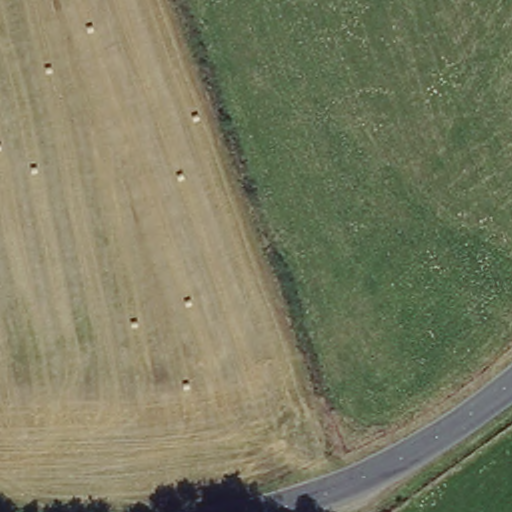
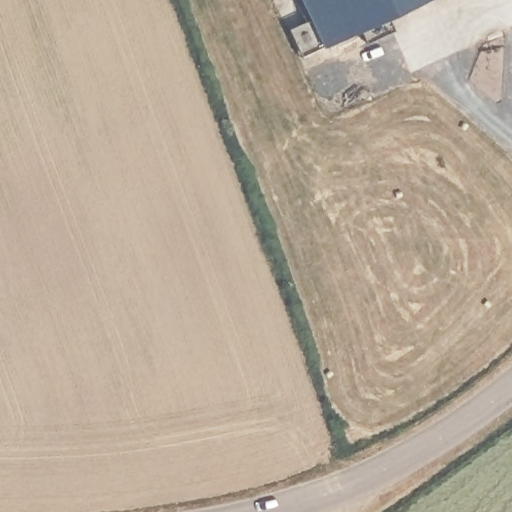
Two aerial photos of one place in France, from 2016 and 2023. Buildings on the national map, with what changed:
new [(301,0),(417,0),(326,48),(301,0)]

